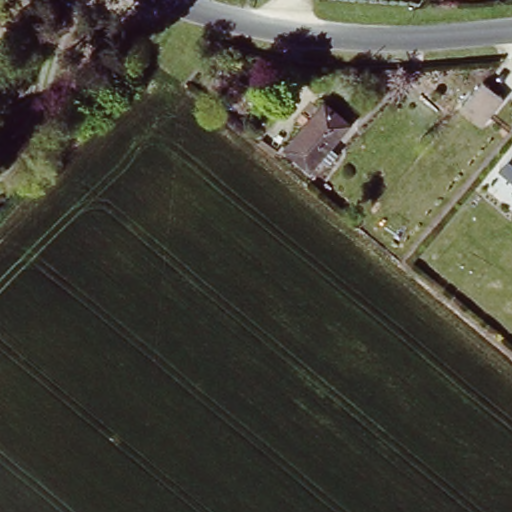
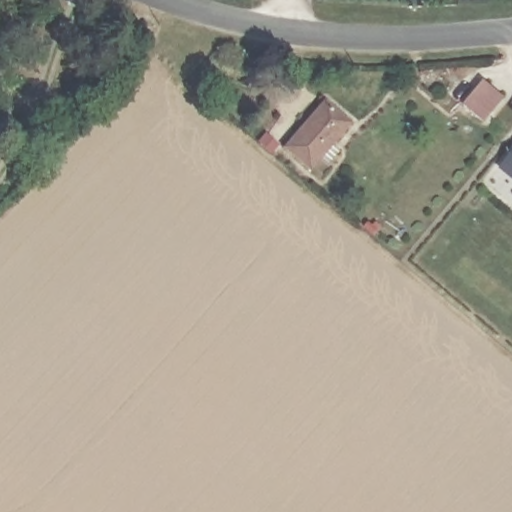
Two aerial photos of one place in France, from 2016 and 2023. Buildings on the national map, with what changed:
unchanged [(502,100),(482,125),(464,111),(485,85),(502,100)]
unchanged [(346,124),(306,169),(282,149),(322,103),(346,124)]
unchanged [(512,157),(512,173),(505,166),(512,157)]

